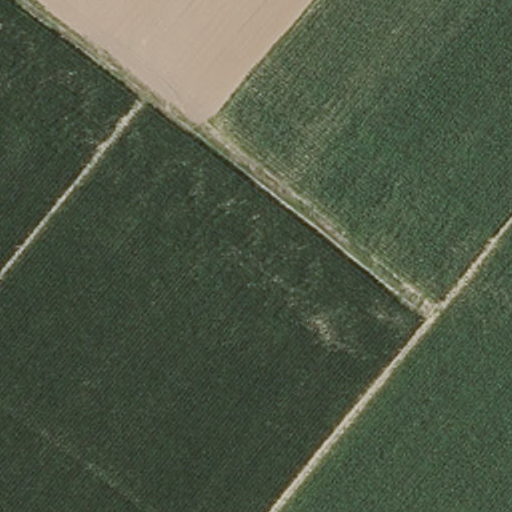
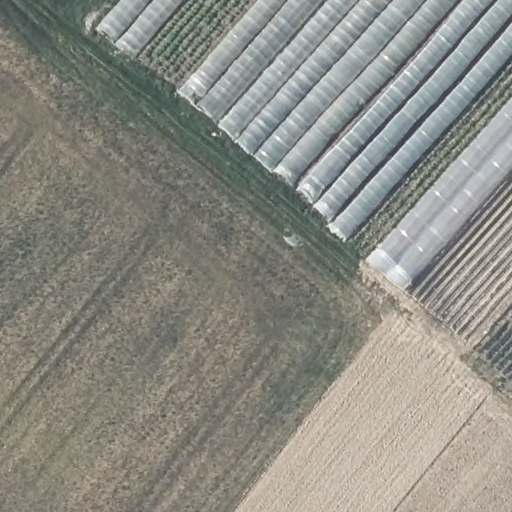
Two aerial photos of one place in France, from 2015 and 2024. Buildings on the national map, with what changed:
demolished [(95,0),(71,27),(35,0),(95,0)]
new [(94,25),(117,0),(180,0),(129,58),(94,25)]
new [(177,91),(256,0),(512,0),(512,56),(348,244),(177,91)]
new [(512,96),(512,164),(401,289),(368,259),(512,96)]

